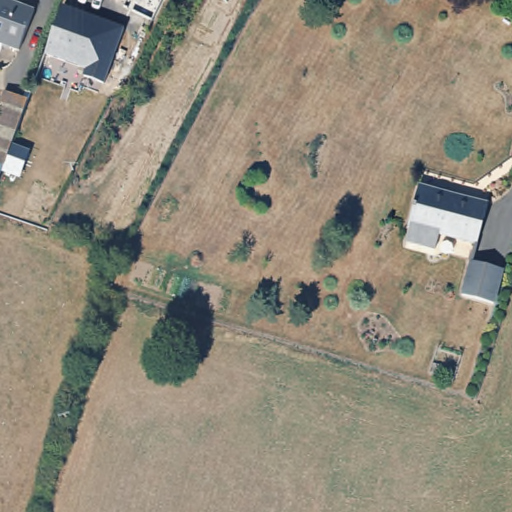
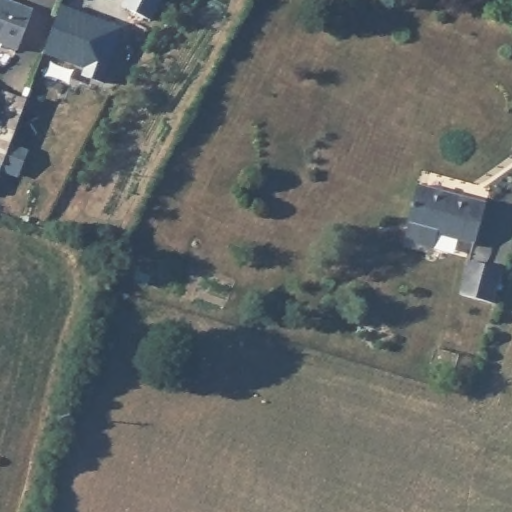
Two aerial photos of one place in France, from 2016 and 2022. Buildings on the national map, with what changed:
unchanged [(19,51),(0,43),(0,0),(6,0),(34,11),(19,51)]
unchanged [(163,0),(152,24),(121,6),(125,0),(163,0)]
unchanged [(124,25),(102,82),(84,76),(87,67),(46,53),(64,2),(124,25)]
unchanged [(28,101),(5,167),(0,165),(0,105),(5,92),(28,101)]
unchanged [(488,199),(477,240),(440,229),(436,244),(407,236),(411,221),(408,221),(420,180),(488,199)]
unchanged [(502,272),(493,304),(462,295),(471,263),(502,272)]

